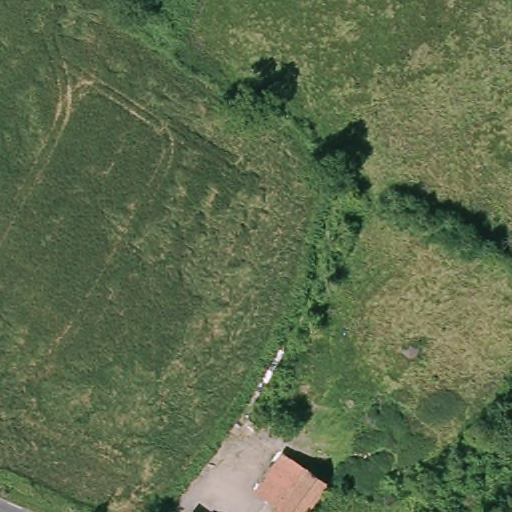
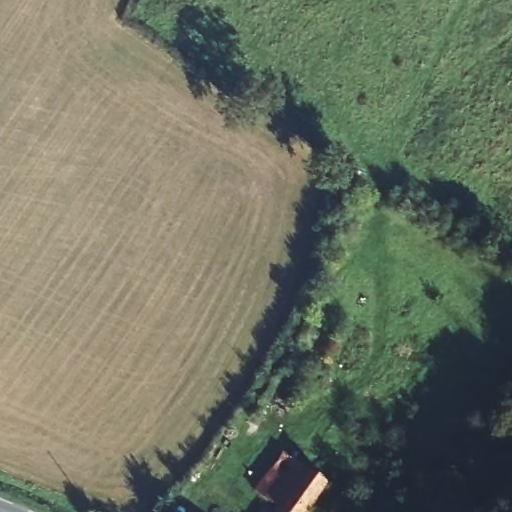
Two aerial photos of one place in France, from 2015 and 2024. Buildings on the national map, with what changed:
unchanged [(317,512),(275,512),(269,507),(302,464),(314,473),(334,490),(317,512)]

